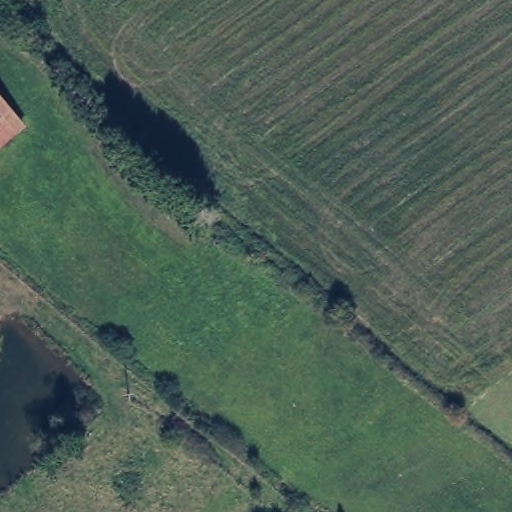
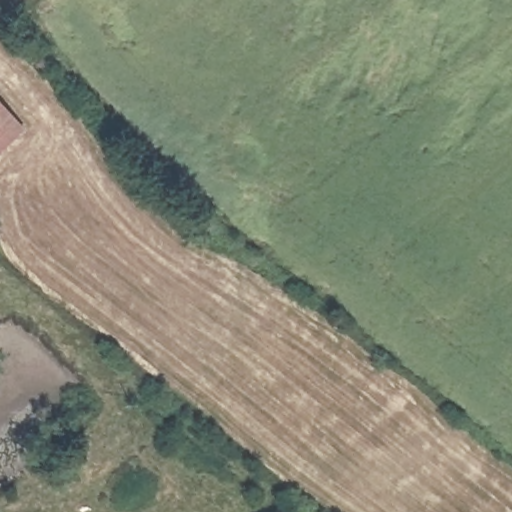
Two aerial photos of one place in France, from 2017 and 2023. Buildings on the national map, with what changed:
unchanged [(0,149),(0,103),(23,129),(0,149)]

